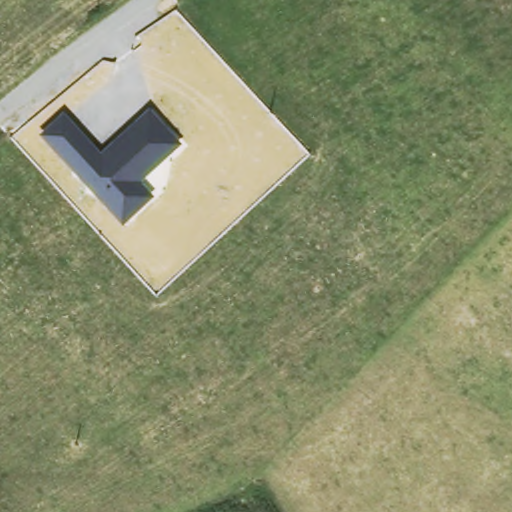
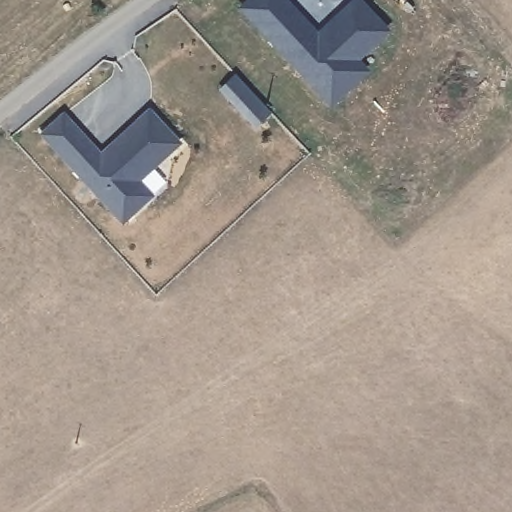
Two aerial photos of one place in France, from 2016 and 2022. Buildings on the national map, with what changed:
new [(350,0),(361,0),(391,30),(360,59),(370,70),(331,108),(237,8),(246,0),(286,0),(317,31),(350,0)]
new [(271,112),(254,129),(219,89),(235,74),(271,112)]
unchanged [(180,143),(140,181),(153,196),(121,223),(39,134),(63,112),(100,151),(149,108),(180,143)]

